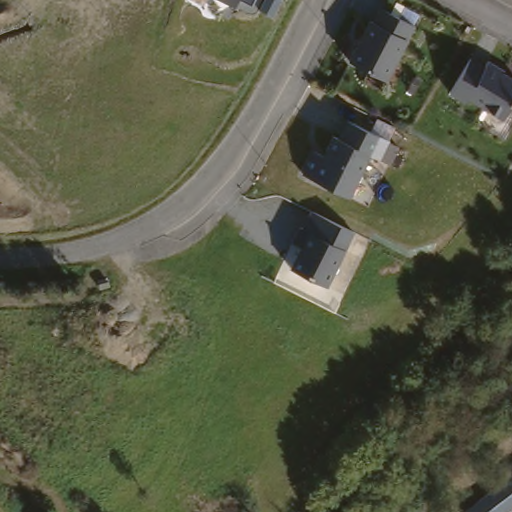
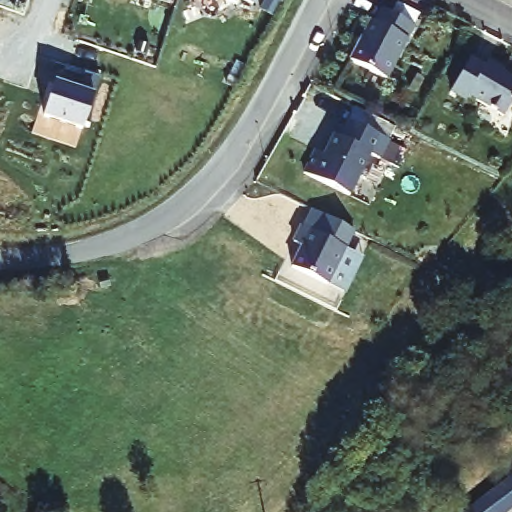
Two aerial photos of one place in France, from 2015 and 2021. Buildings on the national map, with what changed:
unchanged [(224,0),(236,0),(234,5),(224,0)]
unchanged [(253,0),(251,3),(245,0),(253,0)]
unchanged [(418,22),(386,80),(348,60),(382,4),(418,22)]
unchanged [(512,102),(503,116),(471,99),(467,104),(448,91),(472,52),(512,74),(512,102)]
new [(74,147),(31,134),(49,82),(54,82),(77,89),(84,69),(100,75),(92,96),(81,127),(74,147)]
unchanged [(387,135),(375,159),(369,155),(350,194),(305,172),(333,131),(340,134),(350,116),(387,135)]
unchanged [(357,231),(325,286),(287,269),(301,244),(292,239),(311,206),(357,231)]
unchanged [(511,469),(512,471),(512,507),(505,512),(475,512),(470,504),(511,469)]

